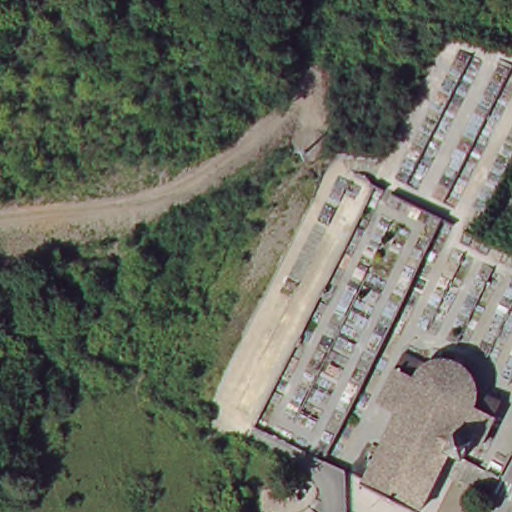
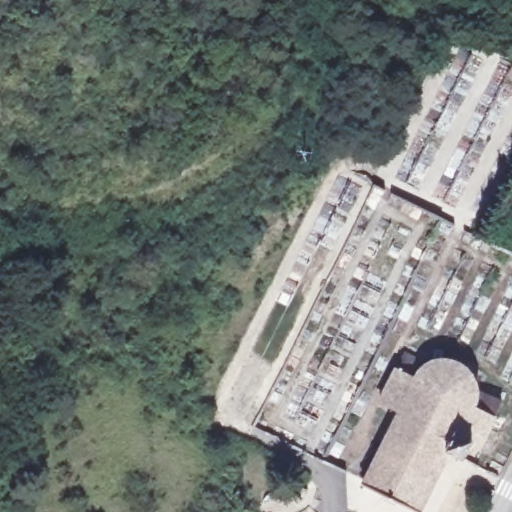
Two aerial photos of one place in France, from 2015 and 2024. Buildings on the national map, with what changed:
unchanged [(377,404),(396,370),(414,377),(424,366),(443,360),(463,362),(476,376),(481,395),(477,410),(494,425),(477,455),(466,453),(457,464),(448,455),(433,486),(421,512),(413,512),(391,502),(361,487),(396,412),(377,404)]

